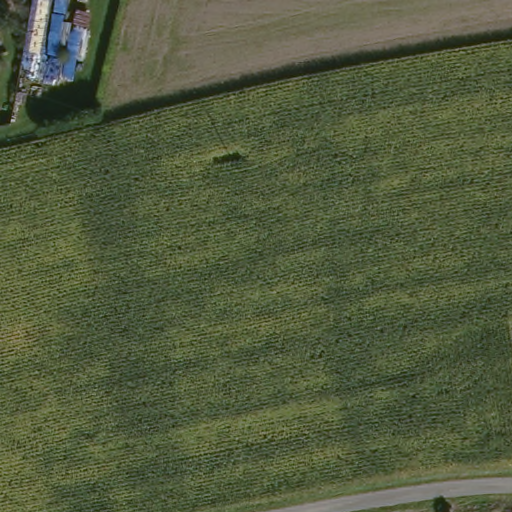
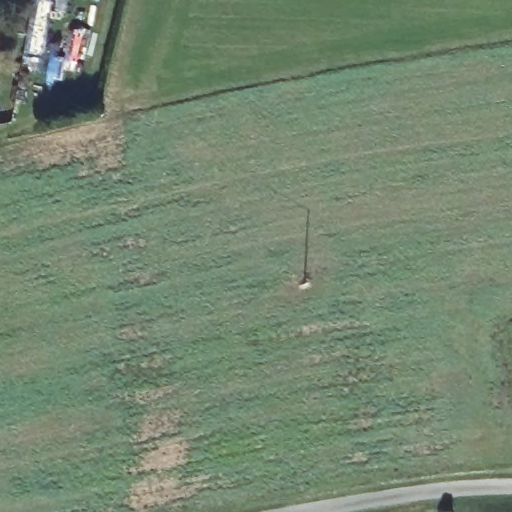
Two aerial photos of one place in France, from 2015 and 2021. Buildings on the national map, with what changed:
unchanged [(441,510),(444,509),(447,510),(449,510),(451,511),(451,512),(438,512),(439,511),(441,510)]

